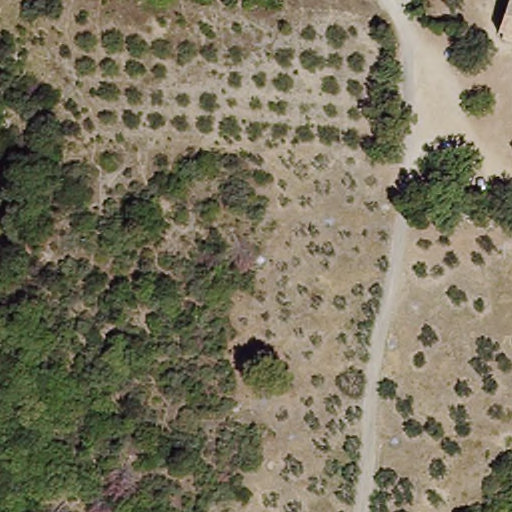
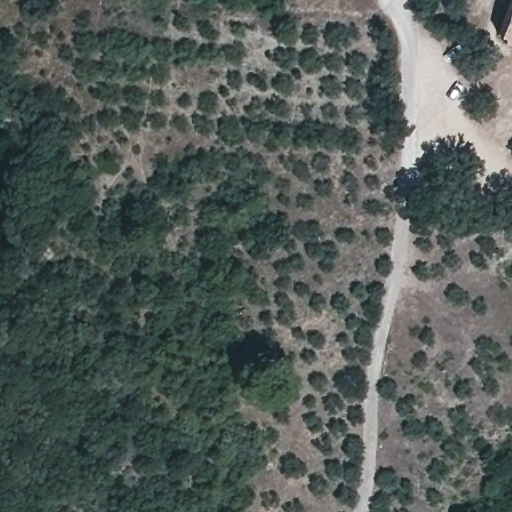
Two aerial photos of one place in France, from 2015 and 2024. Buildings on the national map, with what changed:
unchanged [(505,0),(512,0),(512,44),(498,40),(498,35),(505,0)]

